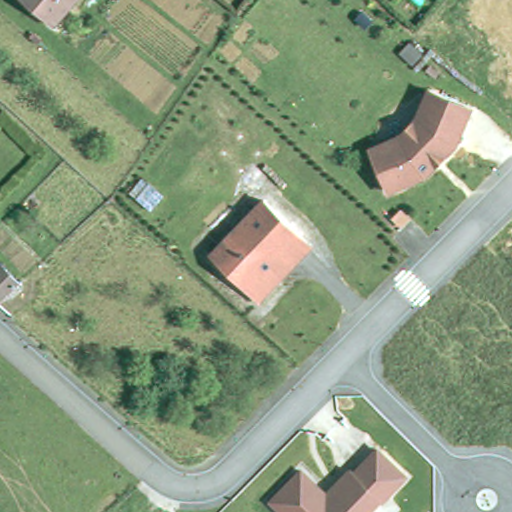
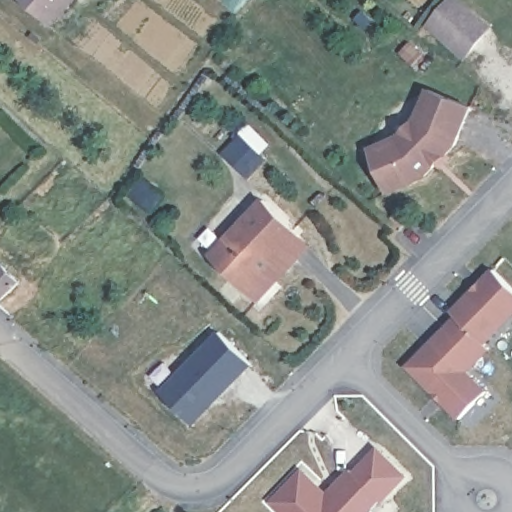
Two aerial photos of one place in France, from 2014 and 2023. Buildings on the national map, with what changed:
unchanged [(23,0),(60,0),(69,7),(54,25),(23,0)]
unchanged [(69,7),(60,0),(75,0),(69,7)]
new [(494,23),(464,59),(424,29),(447,0),(464,0),(494,23)]
unchanged [(422,180),(384,196),(366,154),(394,142),(414,123),(425,95),(468,112),(453,149),(442,159),(431,170),(422,180)]
new [(241,134),(267,159),(248,179),(222,157),(241,134)]
unchanged [(274,286),(256,305),(208,260),(261,205),(297,240),(308,250),(274,286)]
unchanged [(1,263),(20,282),(0,301),(0,265),(1,263)]
new [(457,310),(453,307),(493,267),(512,285),(512,316),(488,341),(457,310)]
new [(469,369),(491,390),(461,420),(406,365),(457,310),(488,341),(494,346),(469,369)]
new [(253,363),(195,423),(158,388),(217,328),(253,363)]
unchanged [(303,467),(329,489),(351,467),(356,469),(378,447),(408,476),(383,501),(381,499),(370,512),(283,512),(271,501),(303,467)]

